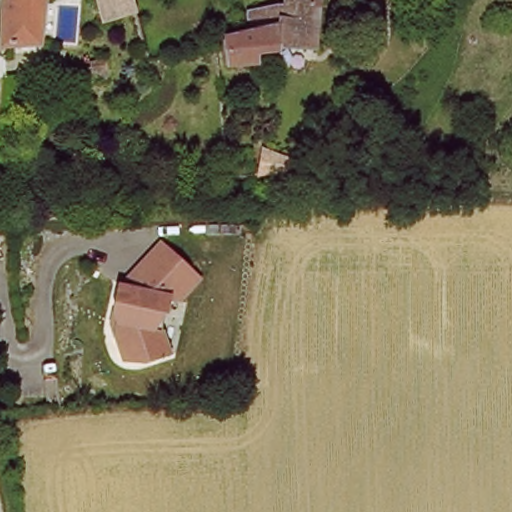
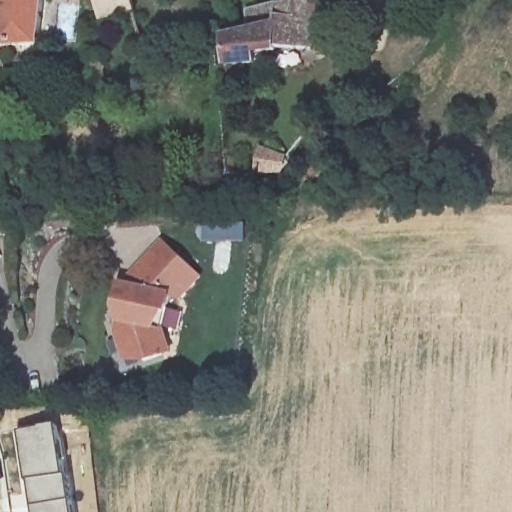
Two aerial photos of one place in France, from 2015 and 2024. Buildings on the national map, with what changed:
unchanged [(2,54),(5,11),(5,0),(45,0),(39,51),(2,54)]
unchanged [(105,26),(101,12),(95,0),(131,0),(136,17),(105,26)]
unchanged [(273,43),(272,47),(250,50),(251,61),(223,63),(220,35),(246,29),(247,6),(273,3),(281,4),(281,0),(309,0),(305,45),(273,43)]
unchanged [(418,30),(408,44),(393,34),(403,21),(418,30)]
unchanged [(105,59),(107,66),(92,69),(91,61),(105,59)]
unchanged [(261,172),(269,147),(291,156),(282,172),(267,172),(261,172)]
unchanged [(180,344),(174,346),(155,353),(148,346),(136,350),(127,323),(123,311),(125,299),(131,276),(133,276),(172,233),(211,269),(191,290),(181,288),(177,305),(173,322),(180,344)]
new [(30,481),(28,481),(22,433),(59,427),(66,479),(71,478),(74,512),(34,512),(30,481)]

